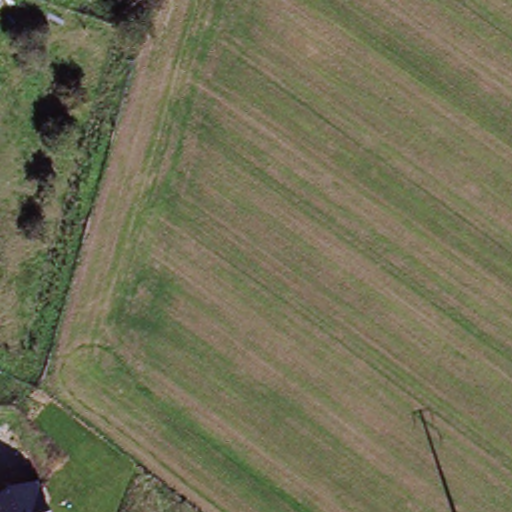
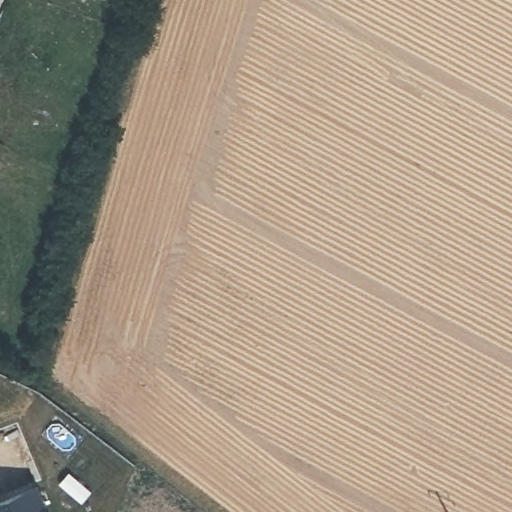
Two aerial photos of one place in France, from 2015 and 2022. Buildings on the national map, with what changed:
unchanged [(0,0),(2,0),(0,6),(0,0)]
unchanged [(0,500),(39,482),(50,512),(0,512),(0,500)]

